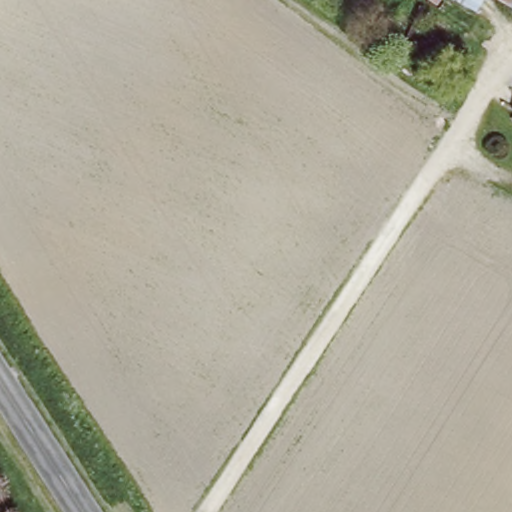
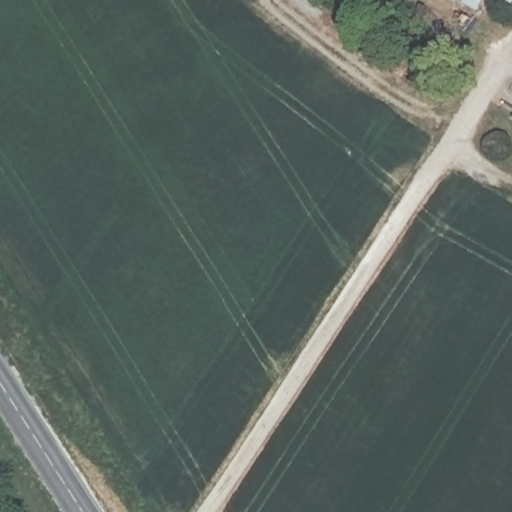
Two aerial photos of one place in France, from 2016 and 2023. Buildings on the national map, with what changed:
unchanged [(509,6),(499,0),(512,0),(509,6)]

